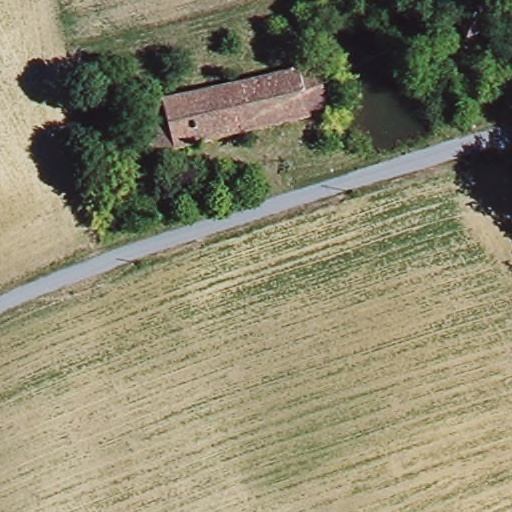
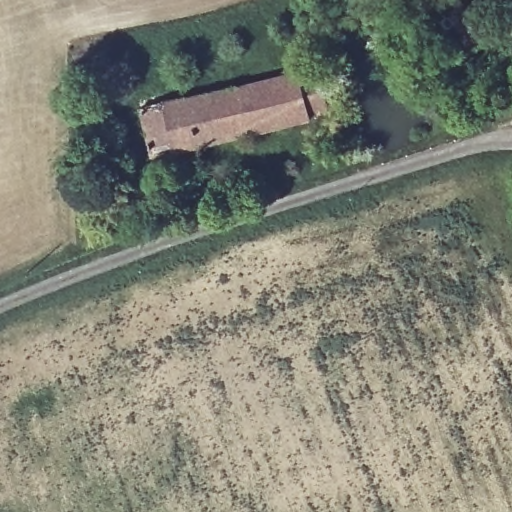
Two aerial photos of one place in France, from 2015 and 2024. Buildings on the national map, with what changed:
unchanged [(463,47),(448,20),(475,0),(482,0),(498,27),(463,47)]
unchanged [(137,106),(318,70),(328,115),(147,156),(137,106)]

